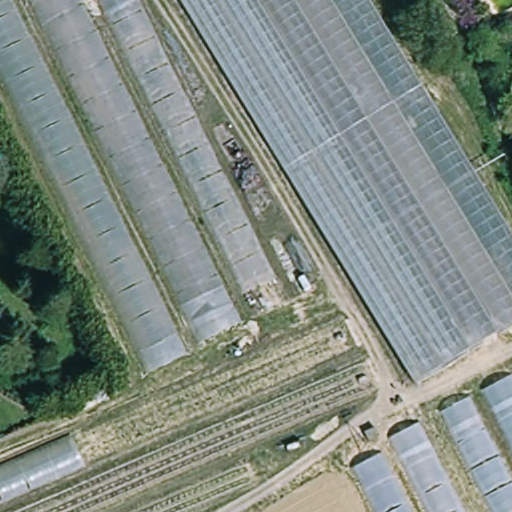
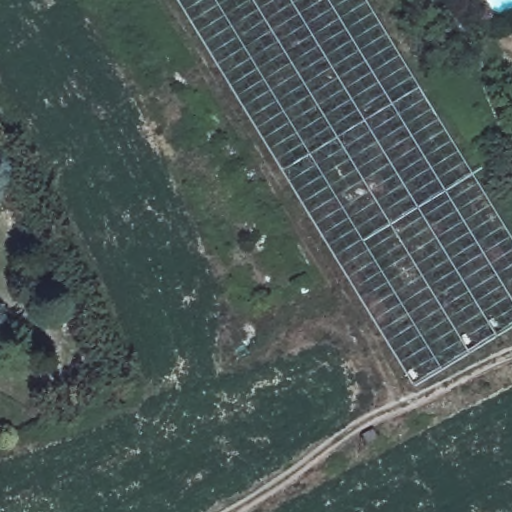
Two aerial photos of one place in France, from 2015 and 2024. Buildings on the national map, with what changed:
demolished [(0,75),(0,0),(82,0),(83,1),(85,0),(140,0),(287,302),(148,376),(0,75)]
new [(273,281),(242,298),(96,0),(131,0),(273,281)]
unchanged [(512,207),(512,334),(414,385),(177,0),(387,0),(512,207)]
demolished [(236,447),(253,481),(177,512),(0,512),(0,459),(336,315),(373,389),(236,447)]
demolished [(390,452),(381,437),(512,372),(512,512),(372,512),(351,471),(390,452)]
unchanged [(363,451),(355,437),(362,433),(371,428),(380,442),(363,451)]

